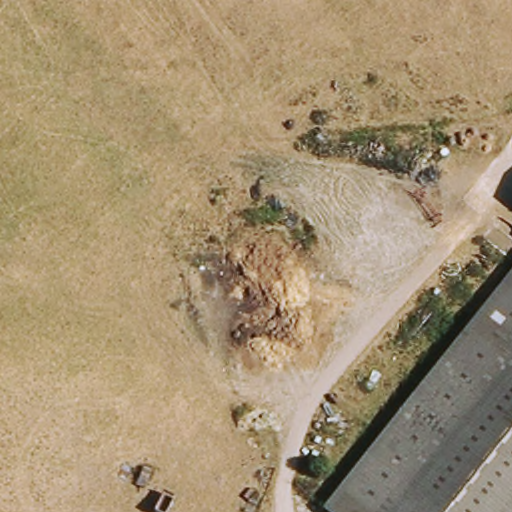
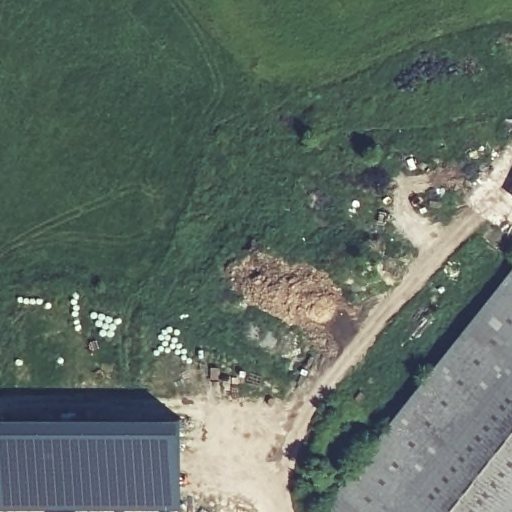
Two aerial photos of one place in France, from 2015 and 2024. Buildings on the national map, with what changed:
unchanged [(512,293),(512,512),(338,512),(512,293)]
new [(1,510),(2,419),(186,417),(185,508),(1,510)]

